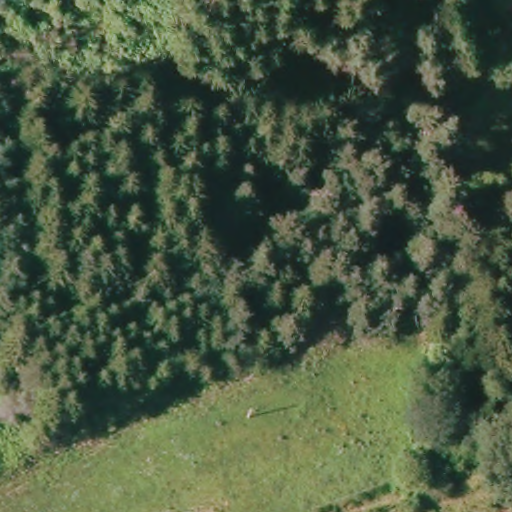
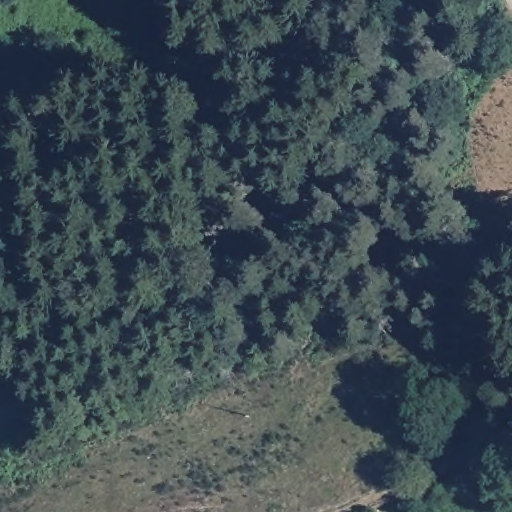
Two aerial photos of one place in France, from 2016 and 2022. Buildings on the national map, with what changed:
[]

